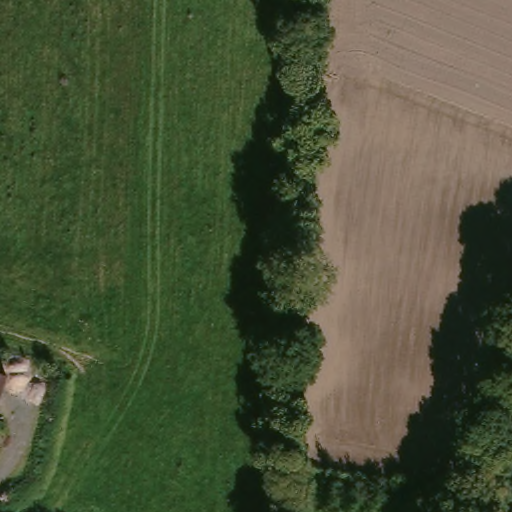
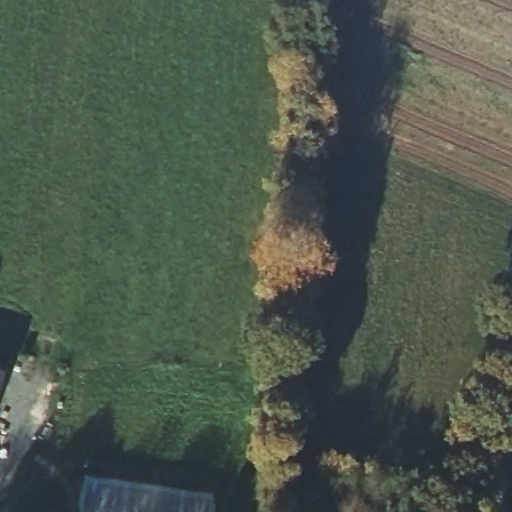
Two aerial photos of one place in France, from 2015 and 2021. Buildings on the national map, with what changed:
unchanged [(2,378),(0,384),(0,377),(2,378)]
new [(86,481),(213,503),(212,512),(81,512),(86,481)]

